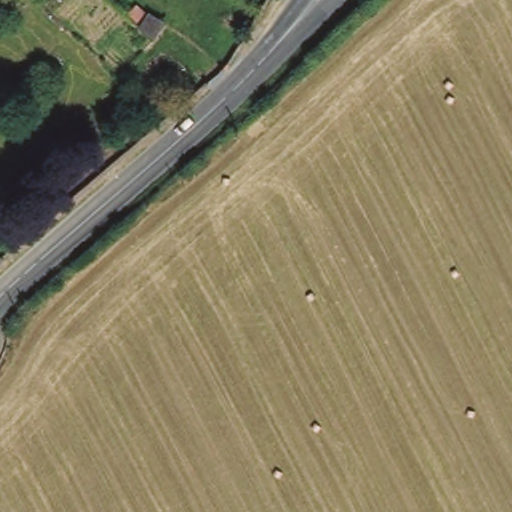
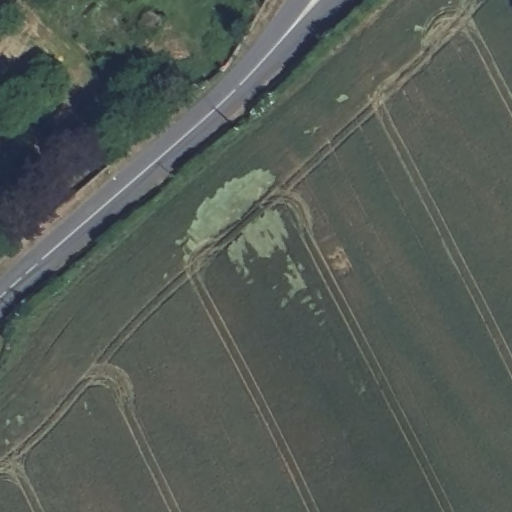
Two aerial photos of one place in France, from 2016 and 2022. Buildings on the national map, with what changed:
unchanged [(136,29),(146,18),(156,25),(151,43),(136,29)]
unchanged [(5,252),(1,255),(7,261),(0,267),(0,247),(5,252)]

